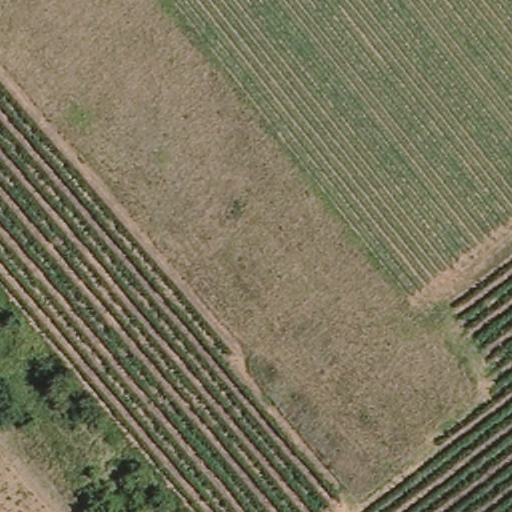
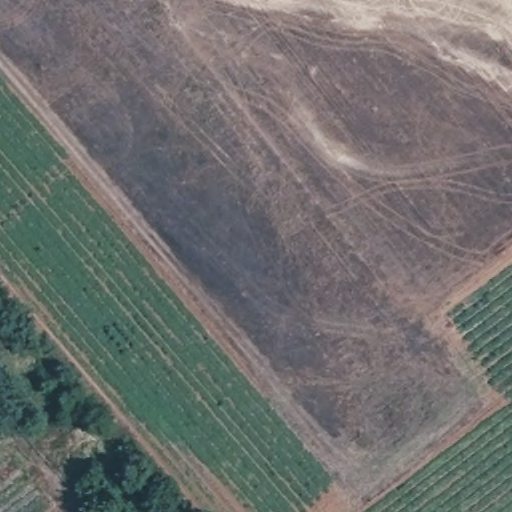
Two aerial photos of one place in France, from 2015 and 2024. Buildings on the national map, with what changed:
[]

